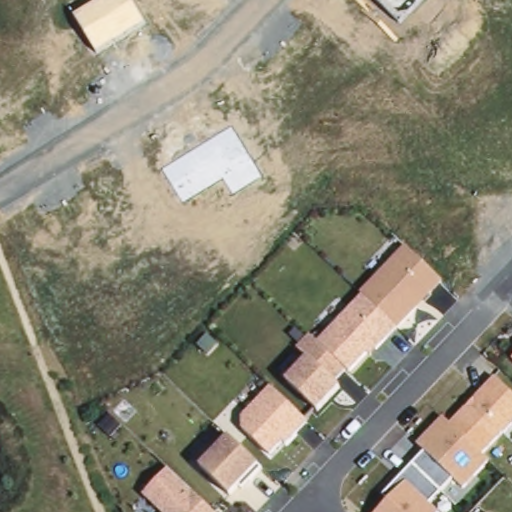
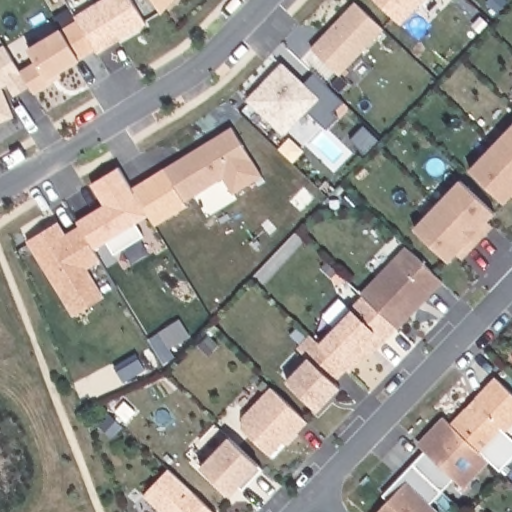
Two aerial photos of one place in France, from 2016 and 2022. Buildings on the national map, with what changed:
unchanged [(97,56),(75,17),(103,0),(131,0),(148,26),(97,56)]
new [(155,0),(173,0),(162,12),(155,0)]
new [(356,0),(385,27),(341,73),(312,46),(356,0)]
unchanged [(372,0),(423,0),(400,25),(372,0)]
new [(51,81),(35,91),(30,85),(22,71),(37,61),(30,49),(62,29),(80,58),(60,71),(62,74),(51,81)]
new [(5,44),(22,71),(30,85),(16,95),(9,83),(3,86),(15,116),(0,122),(0,47),(5,44)]
new [(283,63),(305,83),(315,71),(345,100),(335,111),(340,116),(327,130),(306,110),(285,132),(250,98),(283,63)]
new [(471,168),(512,125),(512,194),(506,201),(471,168)]
new [(234,126),(263,175),(235,193),(225,177),(185,201),(165,168),(234,126)]
new [(137,222),(145,235),(115,253),(107,240),(94,248),(80,226),(78,222),(106,204),(92,183),(120,166),(146,208),(150,214),(137,222)]
new [(458,252),(450,260),(415,227),(461,178),(496,211),(488,219),(495,225),(490,230),(468,252),(463,257),(458,252)]
new [(75,315),(65,300),(28,241),(52,226),(59,222),(67,234),(80,226),(94,248),(101,260),(88,268),(96,281),(105,296),(75,315)]
unchanged [(403,244),(445,282),(373,353),(368,348),(332,383),(340,388),(317,412),(283,379),(303,359),(403,244)]
unchanged [(380,493),(422,448),(415,441),(443,413),(450,421),(495,374),(512,392),(512,425),(480,456),(488,465),(462,492),(451,482),(427,503),(438,512),(377,512),(388,500),(380,493)]
unchanged [(271,385),(307,425),(271,458),(237,422),(271,385)]
unchanged [(227,434),(263,469),(231,499),(198,468),(227,434)]
unchanged [(214,512),(160,512),(144,494),(168,469),(214,512)]

